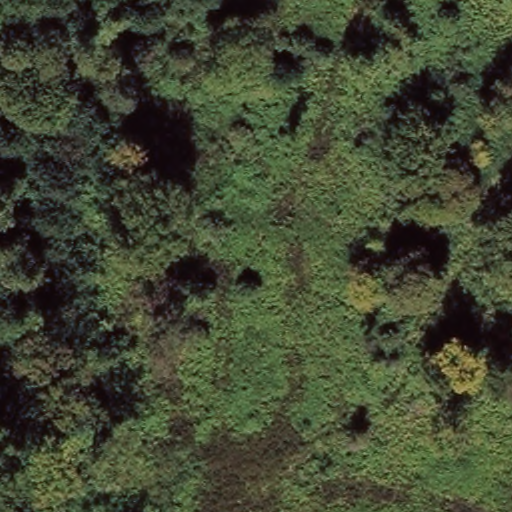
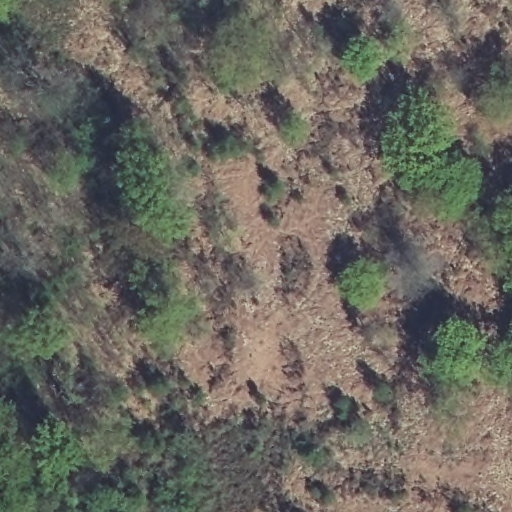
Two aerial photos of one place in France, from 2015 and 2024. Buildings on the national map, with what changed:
[]

